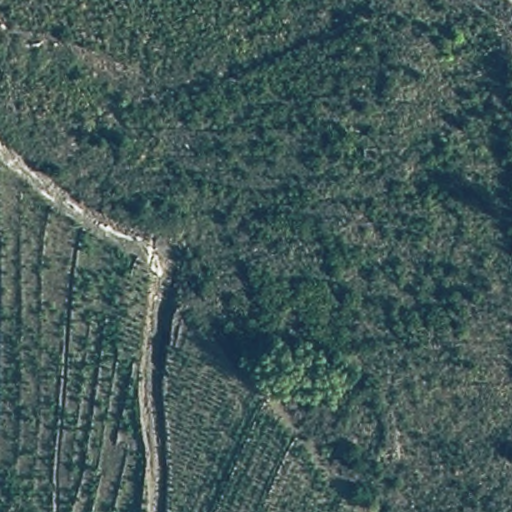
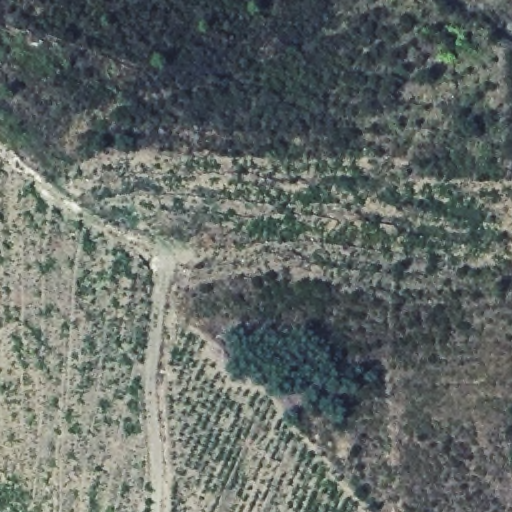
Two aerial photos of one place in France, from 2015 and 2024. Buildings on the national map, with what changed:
[]

